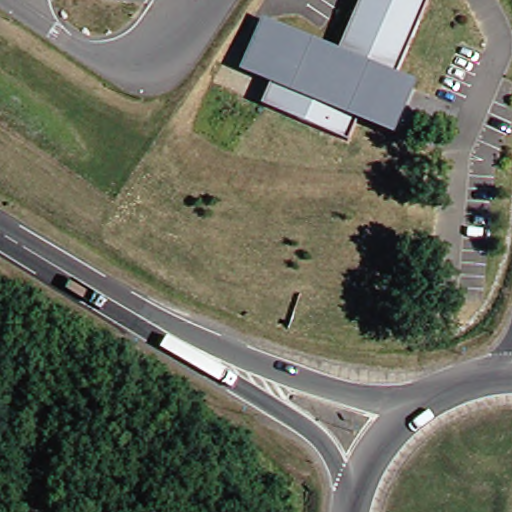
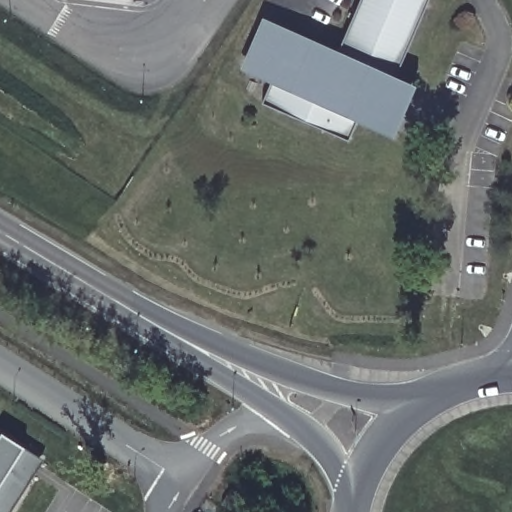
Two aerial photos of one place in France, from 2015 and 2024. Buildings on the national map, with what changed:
unchanged [(360,114),(348,139),(262,102),(272,77),(248,66),(266,23),(336,53),(359,0),(428,0),(394,78),(393,79),(387,76),(369,118),(360,114)]
unchanged [(387,76),(393,79),(394,78),(413,86),(395,129),(369,118),(387,76)]
new [(34,477),(12,512),(0,512),(0,431),(45,460),(34,477)]

